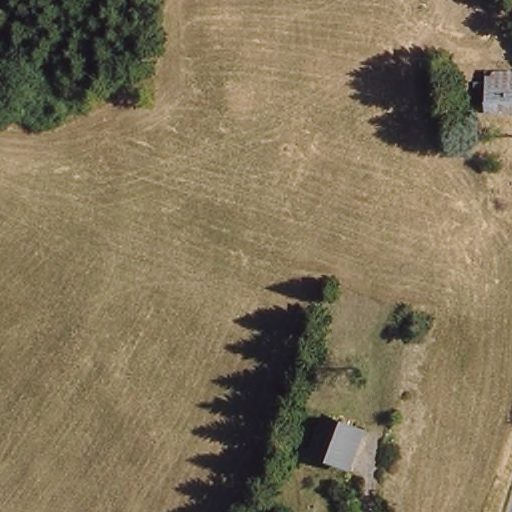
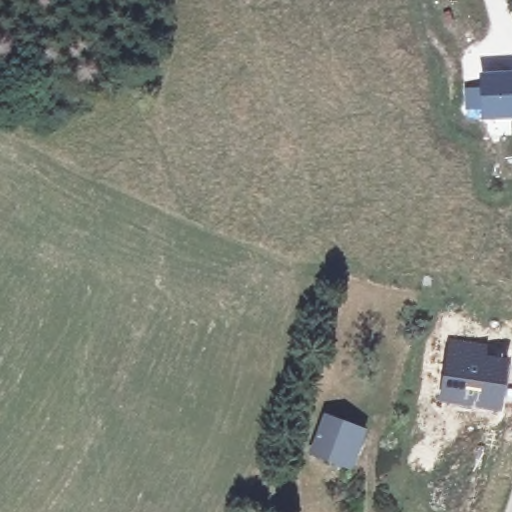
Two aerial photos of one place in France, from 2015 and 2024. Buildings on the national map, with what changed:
unchanged [(512,80),(512,106),(492,107),(489,81),(512,80)]
new [(447,336),(489,342),(488,353),(509,356),(502,411),(437,401),(447,336)]
unchanged [(359,425),(344,460),(313,450),(326,413),(359,425)]

